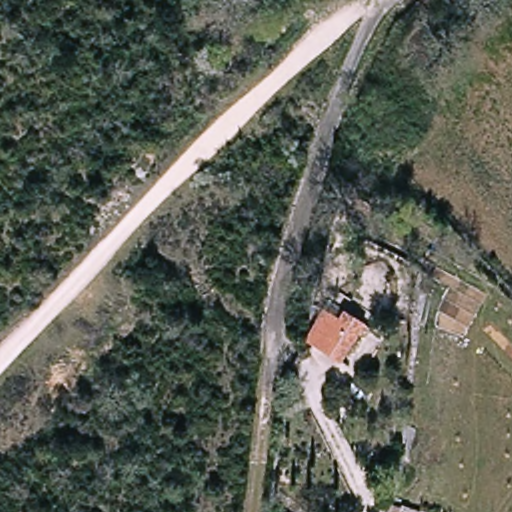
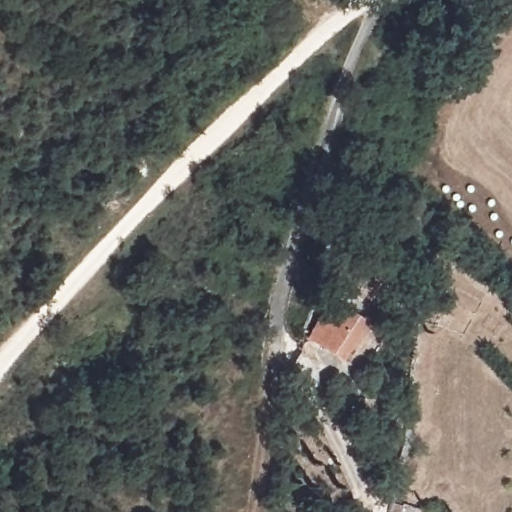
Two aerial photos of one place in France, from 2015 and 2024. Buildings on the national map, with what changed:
unchanged [(359,322),(338,359),(304,338),(314,321),(329,329),(341,310),(359,322)]

